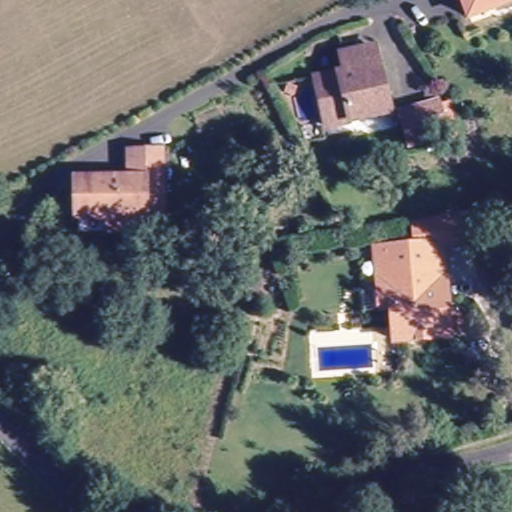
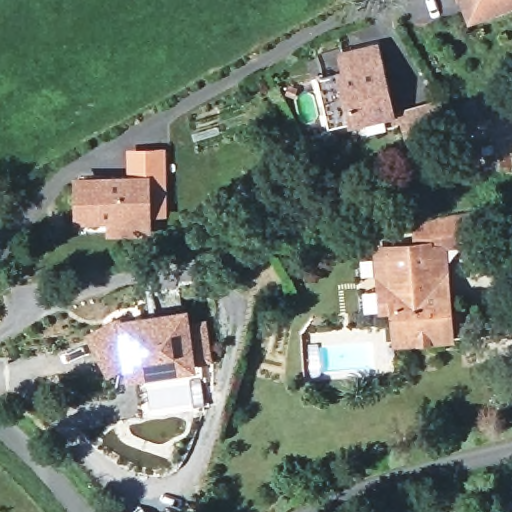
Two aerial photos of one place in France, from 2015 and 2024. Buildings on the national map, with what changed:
unchanged [(456,0),(512,0),(512,5),(465,23),(456,0)]
unchanged [(391,108),(328,123),(316,74),(346,67),(342,50),(375,42),(391,108)]
unchanged [(446,124),(411,135),(403,110),(438,99),(446,124)]
unchanged [(78,213),(77,213),(76,177),(131,176),(131,148),(161,147),(161,175),(162,198),(162,208),(147,208),(147,226),(109,227),(78,228),(78,213)]
unchanged [(459,312),(461,336),(397,342),(394,310),(382,311),(377,250),(441,245),(443,271),(445,291),(447,313),(459,312)]
new [(115,318),(188,309),(189,320),(207,318),(212,364),(194,365),(195,371),(124,382),(123,365),(107,377),(84,335),(115,318)]

